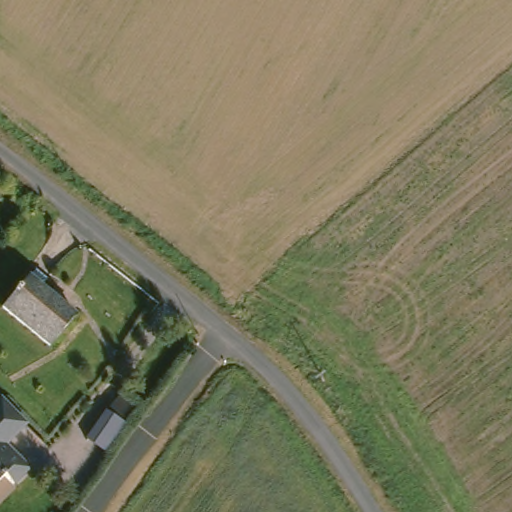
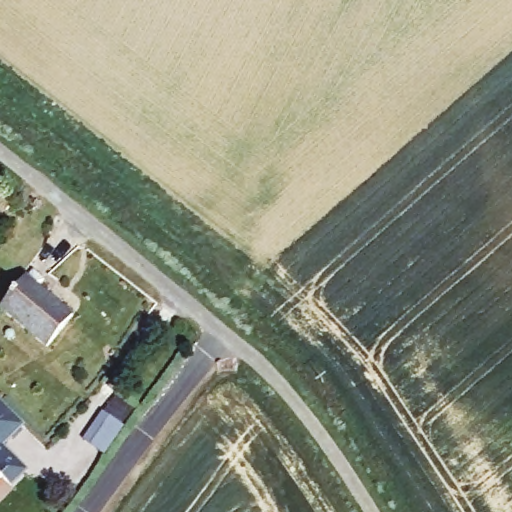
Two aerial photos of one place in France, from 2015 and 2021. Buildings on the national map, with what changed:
unchanged [(45,350),(0,313),(0,310),(25,280),(71,318),(45,350)]
unchanged [(0,451),(0,405),(23,426),(0,451)]
unchanged [(12,488),(2,480),(0,481),(0,452),(26,470),(12,488)]

